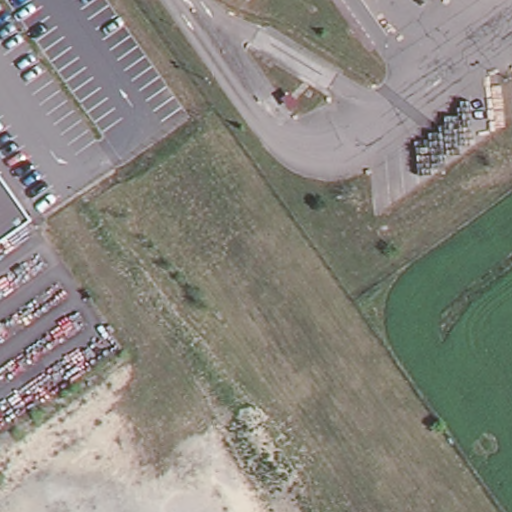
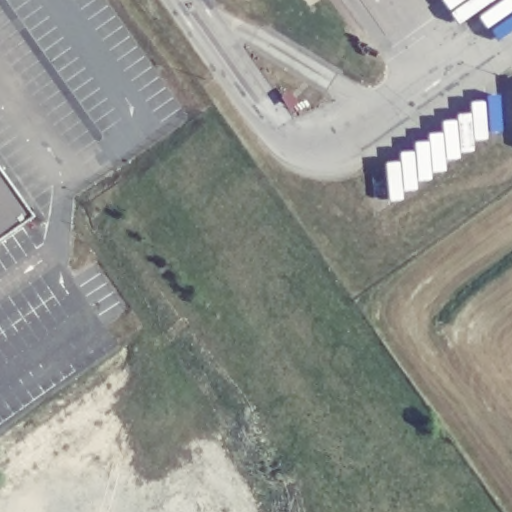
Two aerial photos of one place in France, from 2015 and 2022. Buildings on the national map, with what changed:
unchanged [(32,221),(0,243),(0,176),(32,221)]

